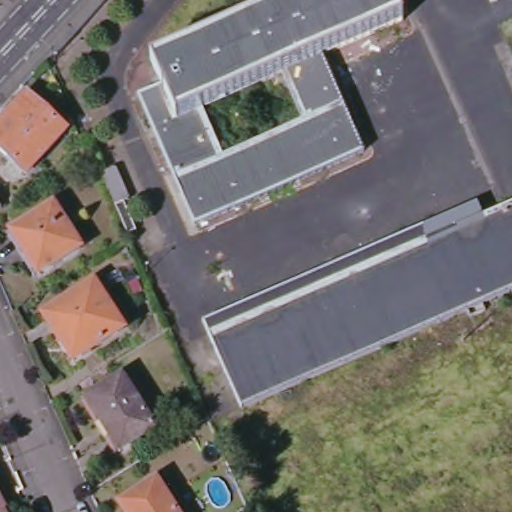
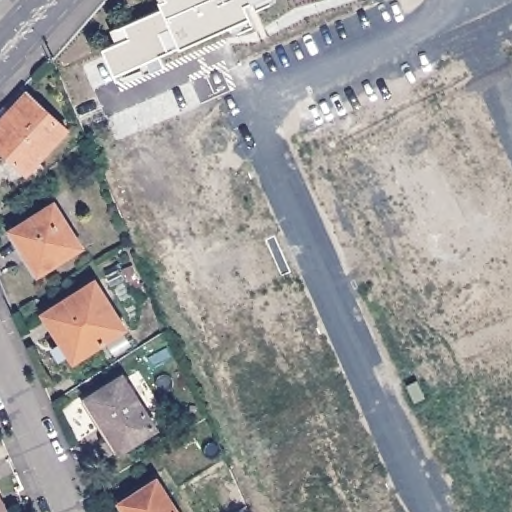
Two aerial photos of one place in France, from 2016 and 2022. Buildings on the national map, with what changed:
new [(280,6),(114,80),(103,53),(112,47),(110,32),(162,12),(156,0),(275,0),(280,6)]
demolished [(162,85),(151,60),(289,0),(395,0),(399,8),(404,6),(407,14),(402,16),(404,20),(323,56),(366,152),(196,227),(138,95),(162,85)]
unchanged [(0,150),(0,123),(27,93),(67,130),(26,174),(0,150)]
demolished [(124,201),(137,231),(128,234),(115,205),(124,201)]
demolished [(478,203),(484,217),(512,204),(512,291),(242,409),(204,322),(478,203)]
unchanged [(12,232),(54,205),(82,247),(40,275),(12,232)]
unchanged [(1,209),(0,209),(0,208),(1,209)]
unchanged [(95,282),(124,329),(73,362),(43,314),(95,282)]
unchanged [(156,429),(120,452),(87,398),(123,376),(156,429)]
unchanged [(176,512),(126,512),(120,503),(157,480),(176,512)]
unchanged [(6,510),(4,511),(2,512),(0,512),(0,498),(6,510)]
unchanged [(4,512),(2,512),(4,511),(4,512)]

